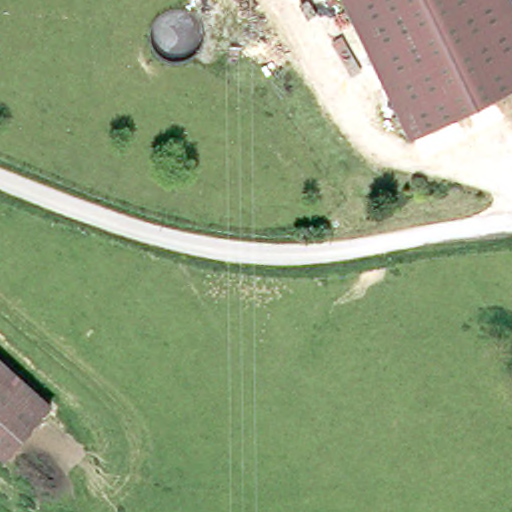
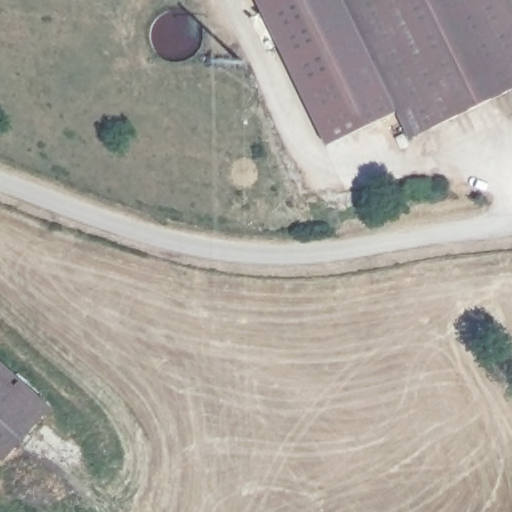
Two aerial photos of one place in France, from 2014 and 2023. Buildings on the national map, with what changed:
new [(402,122),(339,152),(264,0),(344,0),(402,122)]
unchanged [(512,85),(410,136),(402,122),(344,0),(512,0),(512,85)]
unchanged [(57,410),(47,421),(10,461),(0,452),(0,360),(57,410)]

